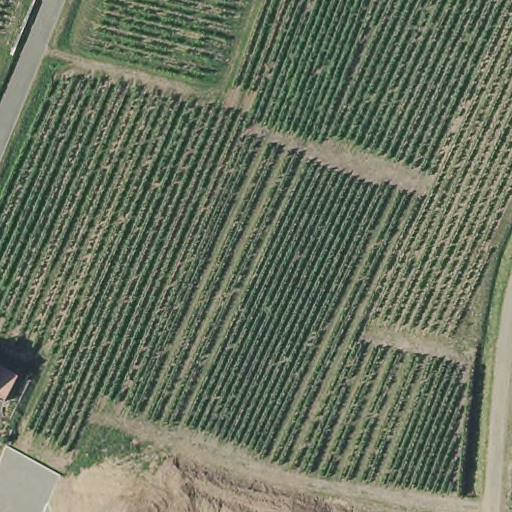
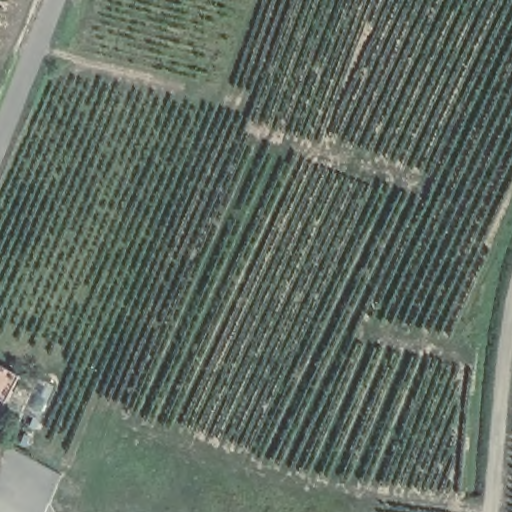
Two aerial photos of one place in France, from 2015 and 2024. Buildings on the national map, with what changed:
unchanged [(0,402),(0,361),(21,373),(3,404),(0,402)]

